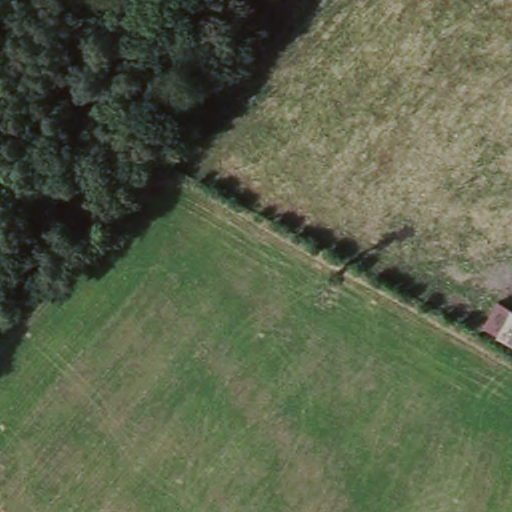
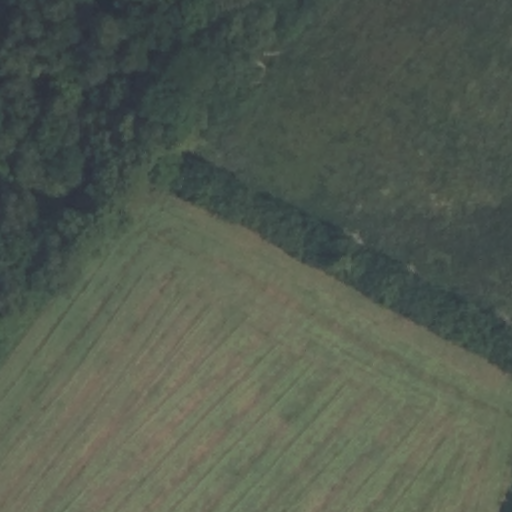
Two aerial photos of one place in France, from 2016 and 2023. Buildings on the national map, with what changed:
unchanged [(493,314),(509,288),(512,289),(512,325),(511,325),(493,314)]

